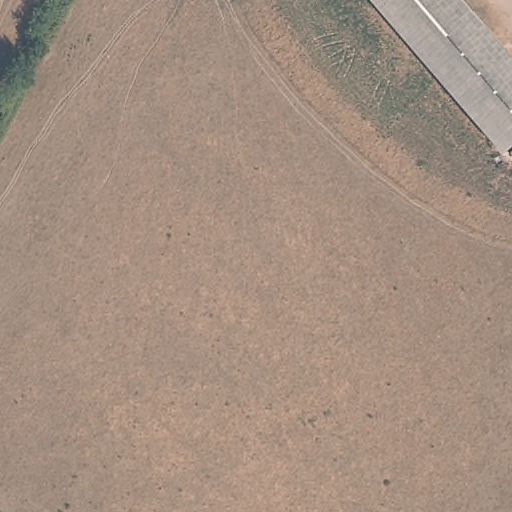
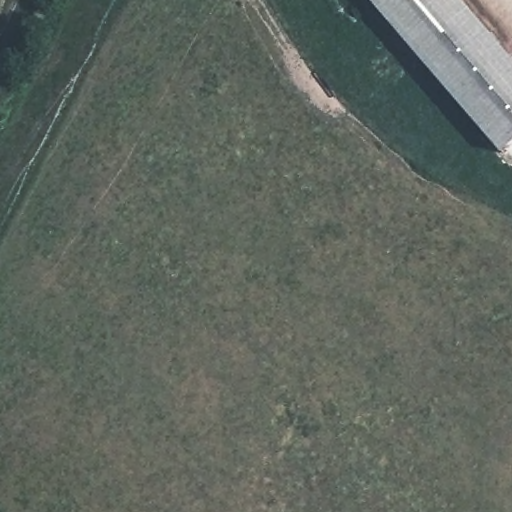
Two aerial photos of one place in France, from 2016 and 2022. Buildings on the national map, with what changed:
unchanged [(512,148),(501,157),(367,0),(461,0),(512,60),(512,148)]

